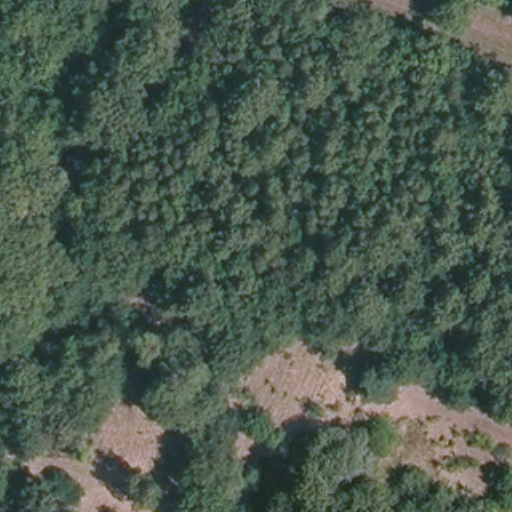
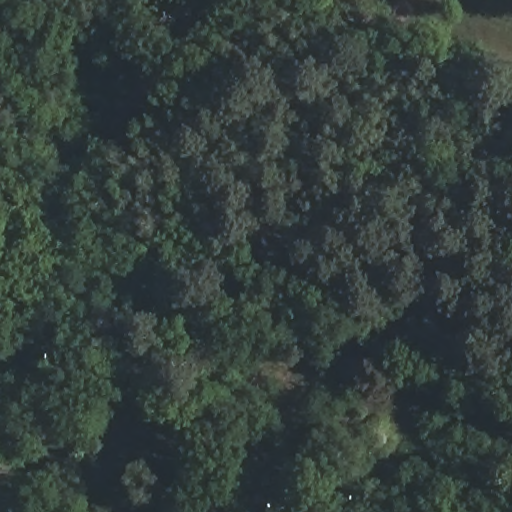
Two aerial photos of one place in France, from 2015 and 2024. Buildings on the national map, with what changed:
[]

